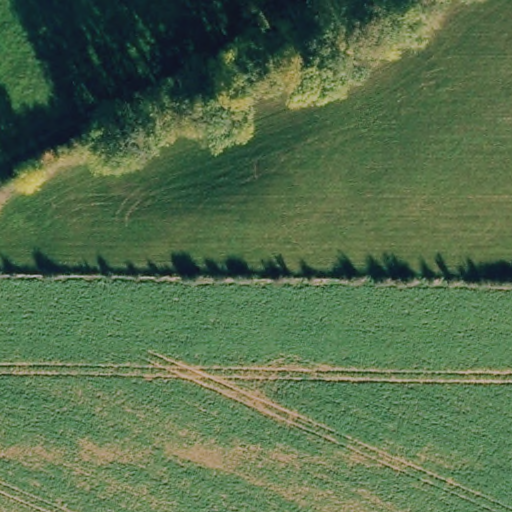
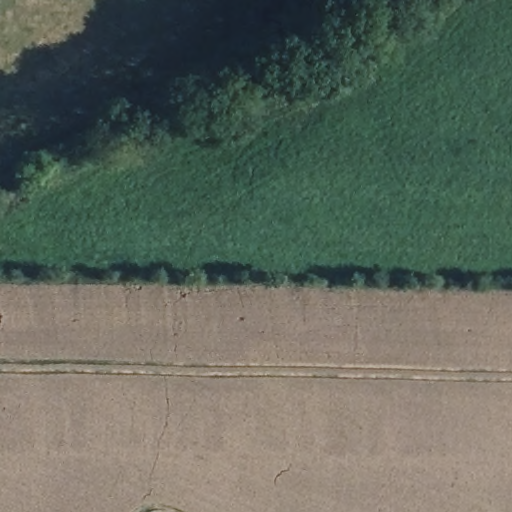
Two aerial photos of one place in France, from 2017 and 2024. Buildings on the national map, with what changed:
[]

